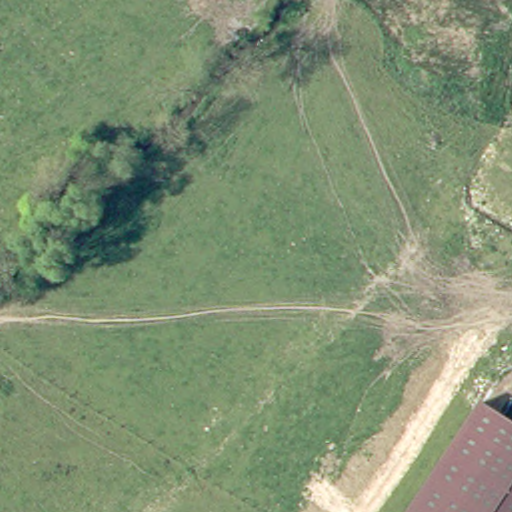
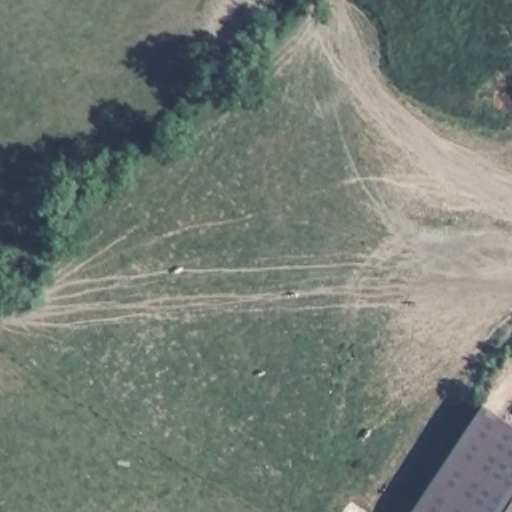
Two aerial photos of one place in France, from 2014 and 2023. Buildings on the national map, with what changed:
unchanged [(411,512),(480,407),(512,427),(512,512),(411,512)]

